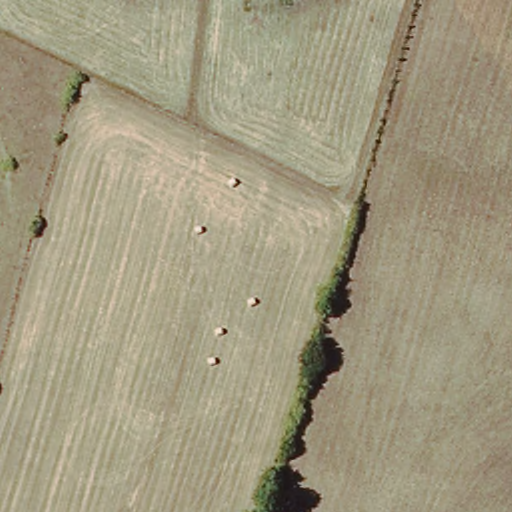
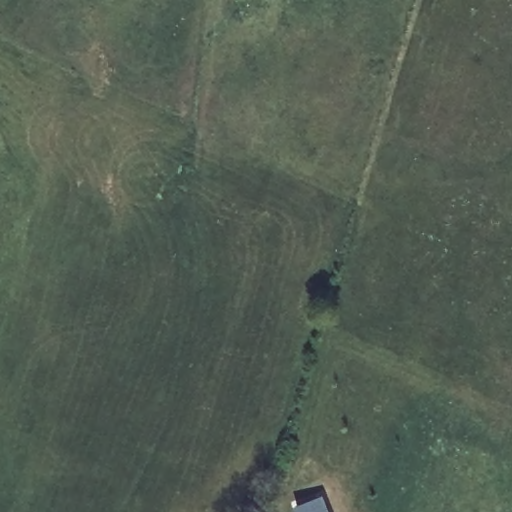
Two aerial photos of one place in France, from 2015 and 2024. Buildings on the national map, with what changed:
new [(330,512),(292,512),(290,507),(324,494),(330,512)]

